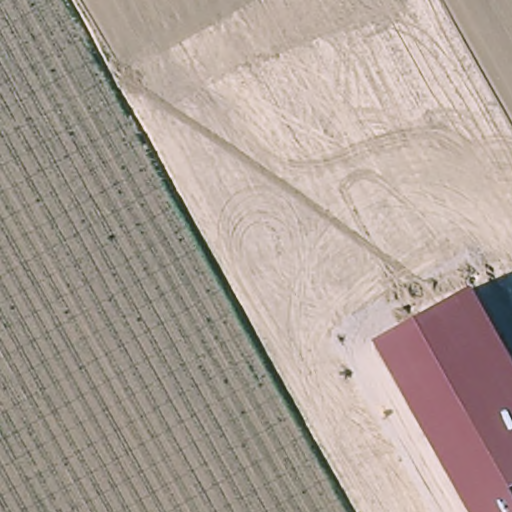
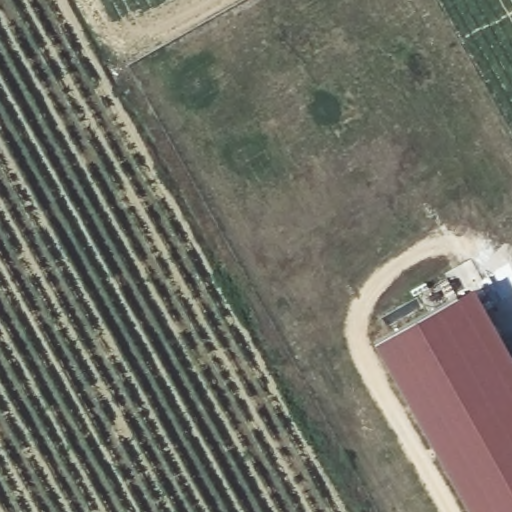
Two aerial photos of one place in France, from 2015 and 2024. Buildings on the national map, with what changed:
unchanged [(470,512),(373,341),(473,286),(512,355),(512,512),(470,512)]

